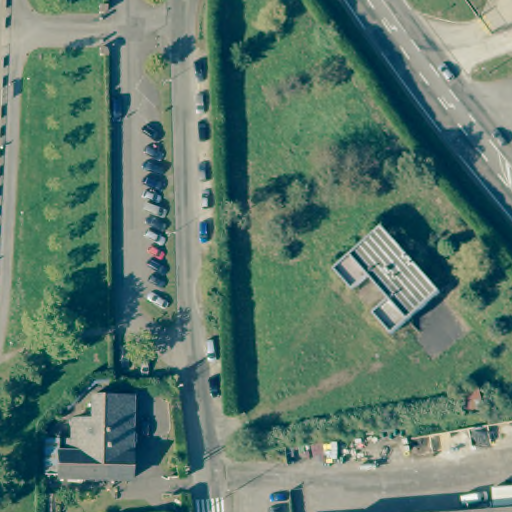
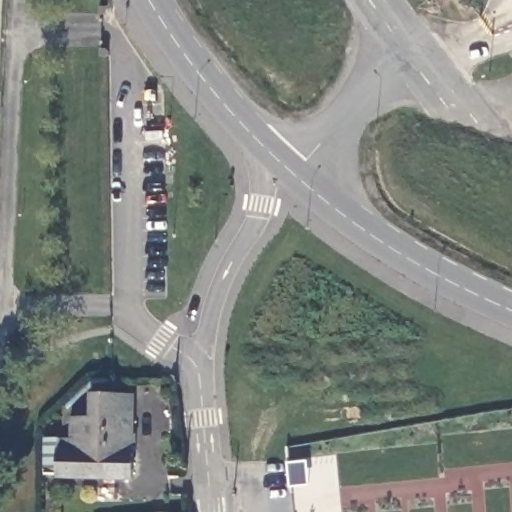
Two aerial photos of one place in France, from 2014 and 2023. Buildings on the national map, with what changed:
demolished [(392,330),(374,309),(389,295),(370,273),(354,287),(335,265),(383,223),(441,289),(392,330)]
unchanged [(46,436),(59,436),(75,436),(76,415),(94,415),(95,392),(134,392),(133,476),(59,475),(59,472),(45,471),(46,436)]
demolished [(422,512),(512,505),(512,512),(422,512)]

